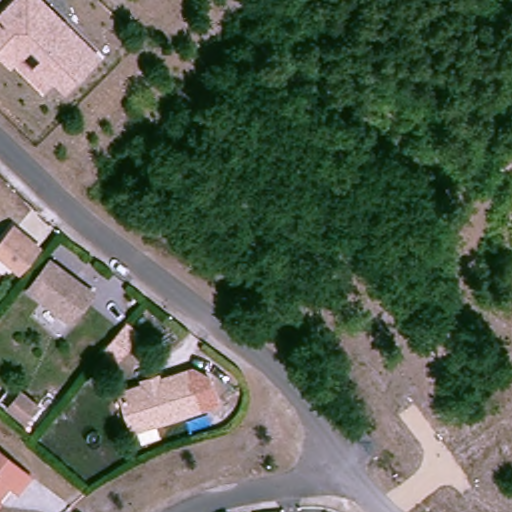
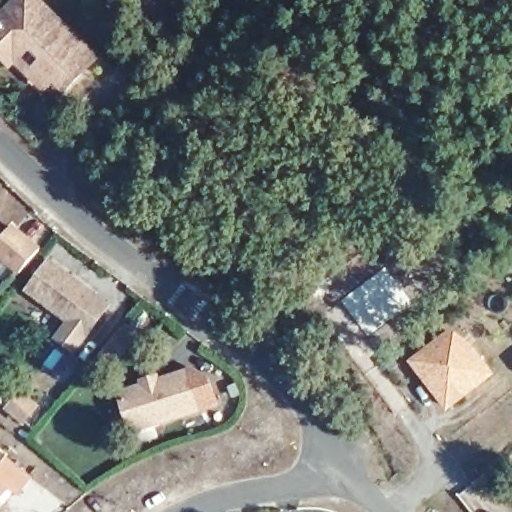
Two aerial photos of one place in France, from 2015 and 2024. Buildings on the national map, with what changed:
unchanged [(55,80),(50,86),(6,44),(15,35),(2,22),(0,20),(0,19),(19,0),(39,0),(44,5),(66,26),(99,58),(67,91),(55,80)]
unchanged [(0,242),(16,222),(44,245),(35,255),(24,268),(0,248),(0,242)]
unchanged [(75,322),(34,290),(32,290),(54,261),(97,294),(75,322)]
new [(449,327),(474,344),(496,374),(447,411),(408,360),(449,327)]
unchanged [(131,339),(116,357),(104,347),(111,339),(119,329),(131,339)]
unchanged [(149,377),(164,372),(164,377),(192,368),(204,406),(138,427),(126,389),(150,381),(149,377)]
unchanged [(6,409),(19,394),(35,407),(22,422),(6,409)]
unchanged [(20,493),(10,485),(0,497),(0,451),(33,478),(20,493)]
unchanged [(0,505),(0,501),(2,502),(0,505)]

